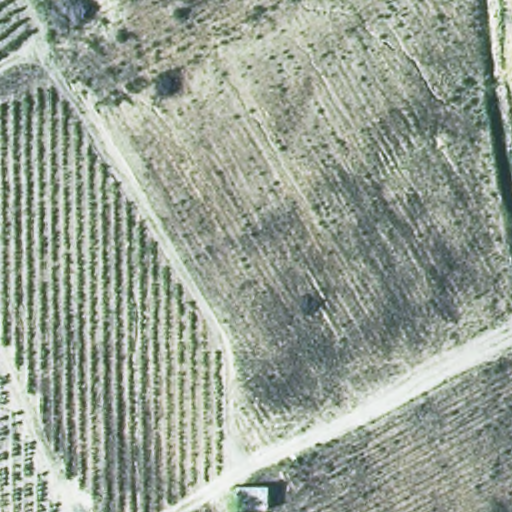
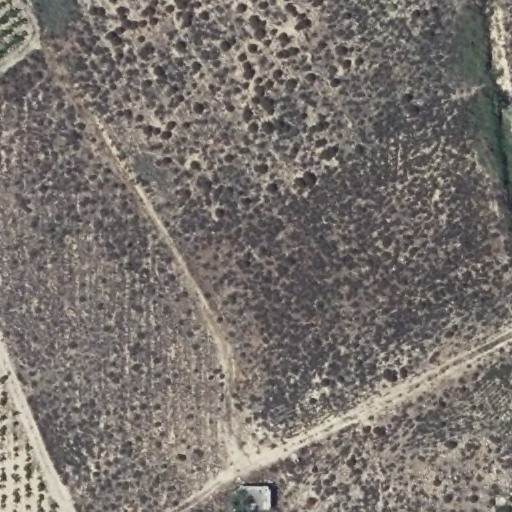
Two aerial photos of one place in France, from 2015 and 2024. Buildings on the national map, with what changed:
unchanged [(271,486),(272,507),(239,507),(239,487),(271,486)]

